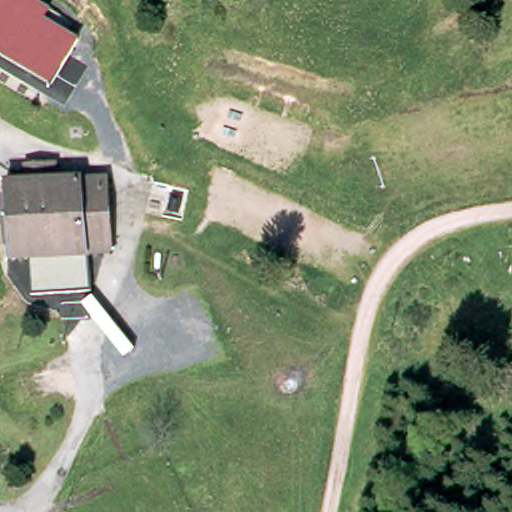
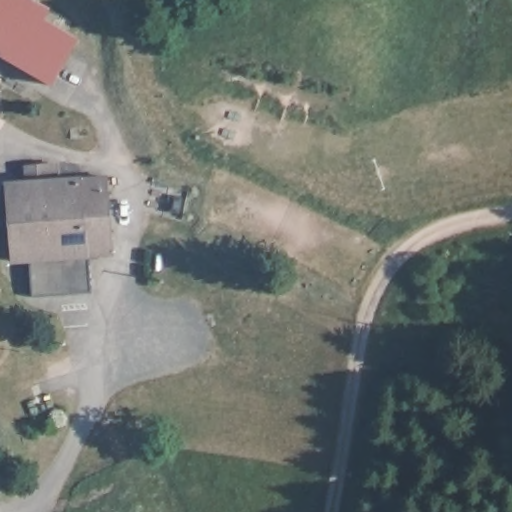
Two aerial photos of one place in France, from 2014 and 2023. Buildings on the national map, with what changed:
unchanged [(0,57),(0,0),(29,0),(47,11),(41,21),(73,40),(47,86),(0,57)]
unchanged [(52,276),(50,249),(8,250),(5,176),(25,175),(25,161),(54,161),(55,176),(85,175),(109,176),(110,196),(112,221),(113,247),(101,247),(98,247),(87,247),(87,274),(88,287),(53,287),(52,276)]

